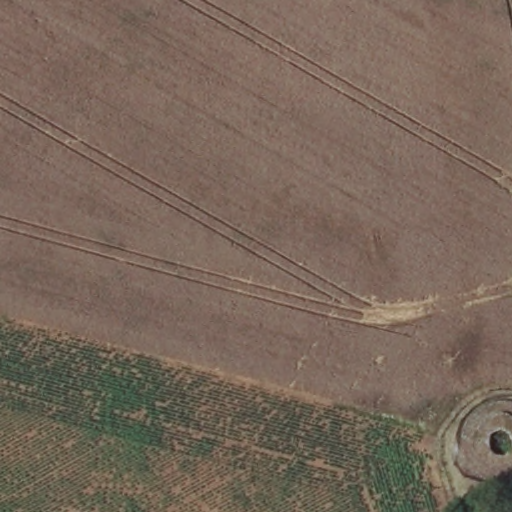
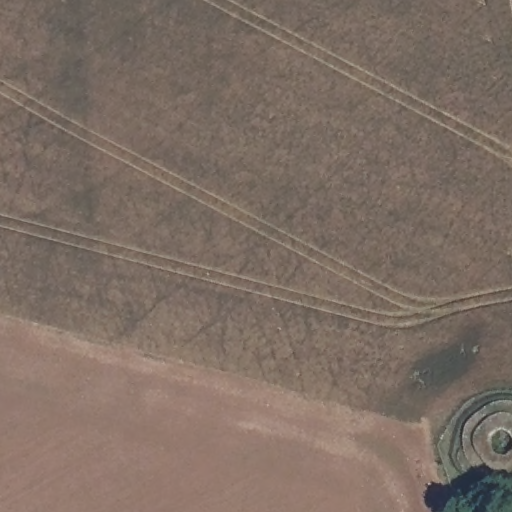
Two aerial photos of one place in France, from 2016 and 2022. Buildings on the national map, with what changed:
unchanged [(492,403),(504,400),(512,399),(512,479),(495,481),(481,473),(466,454),(465,441),(466,426),(473,416),(492,403)]

